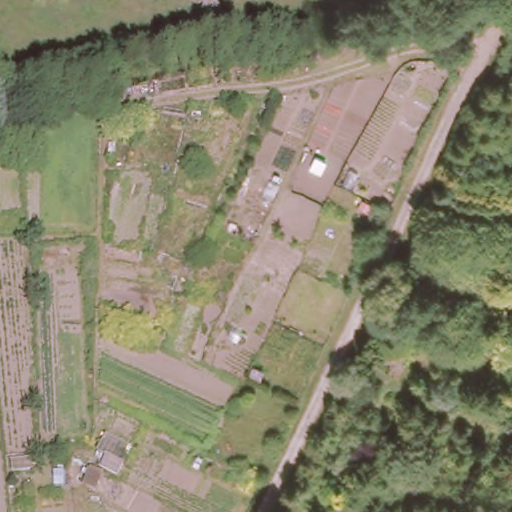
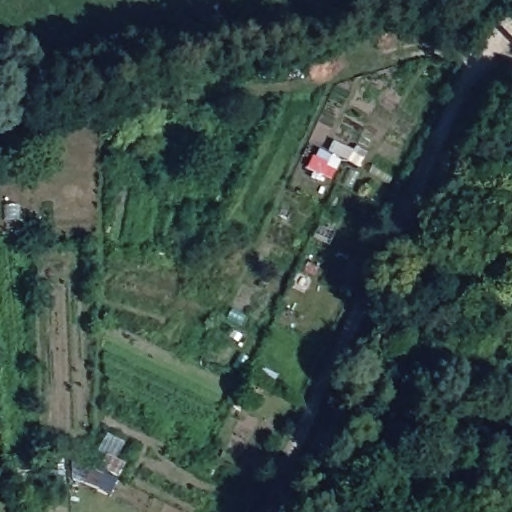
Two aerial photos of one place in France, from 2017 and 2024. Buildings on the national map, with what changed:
unchanged [(467,36),(447,30),(456,6),(474,10),(467,36)]

